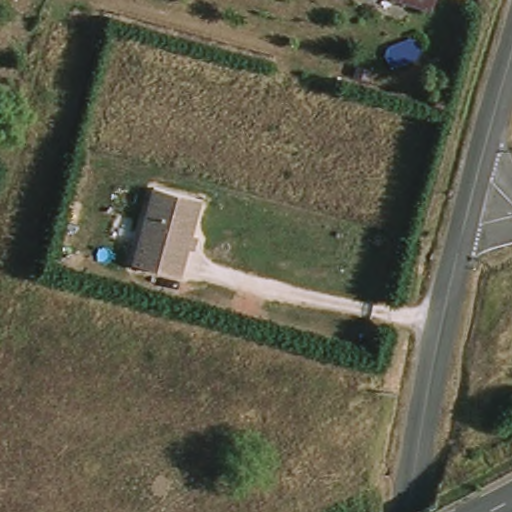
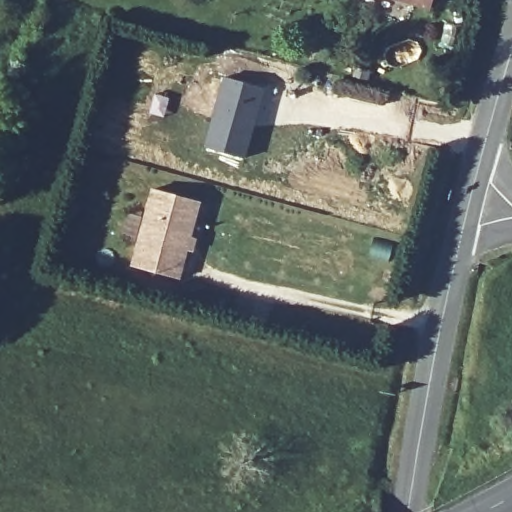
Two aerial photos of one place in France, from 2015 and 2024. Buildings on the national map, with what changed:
unchanged [(416,0),(433,0),(431,4),(416,0)]
new [(223,75),(265,89),(245,158),(202,146),(223,75)]
unchanged [(177,278),(130,265),(151,186),(199,199),(177,278)]

